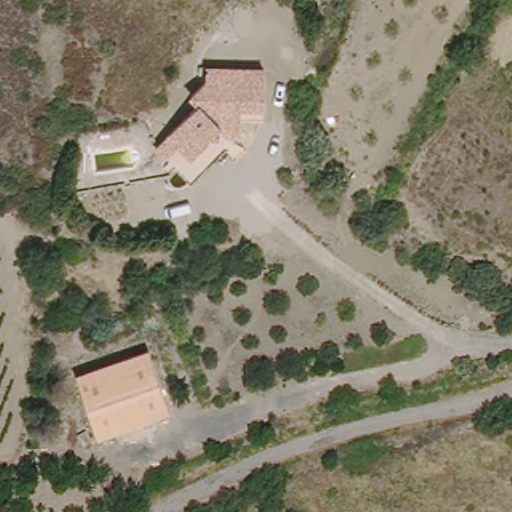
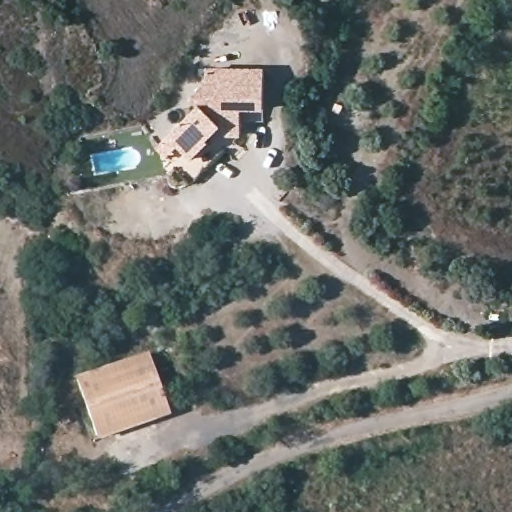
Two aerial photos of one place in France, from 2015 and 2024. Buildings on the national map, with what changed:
unchanged [(185,91),(204,76),(204,65),(260,65),(260,114),(235,114),(235,139),(183,180),(149,140),(194,104),(185,91)]
unchanged [(97,436),(77,373),(142,354),(162,415),(97,436)]

